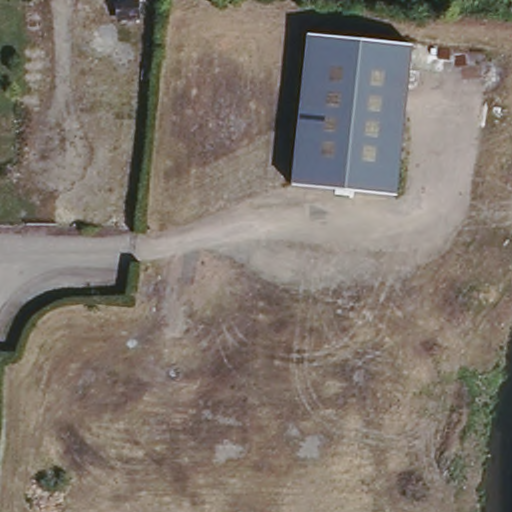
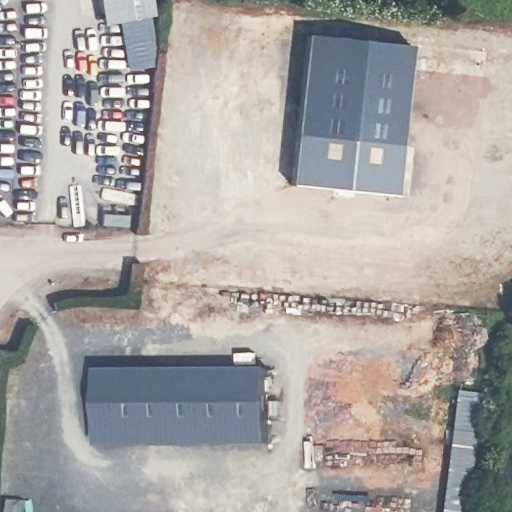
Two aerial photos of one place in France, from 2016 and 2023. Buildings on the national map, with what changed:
new [(153,16),(148,67),(129,69),(121,22),(153,16)]
unchanged [(410,46),(394,196),(290,186),(308,34),(410,46)]
new [(272,365),(273,442),(101,445),(99,367),(272,365)]

